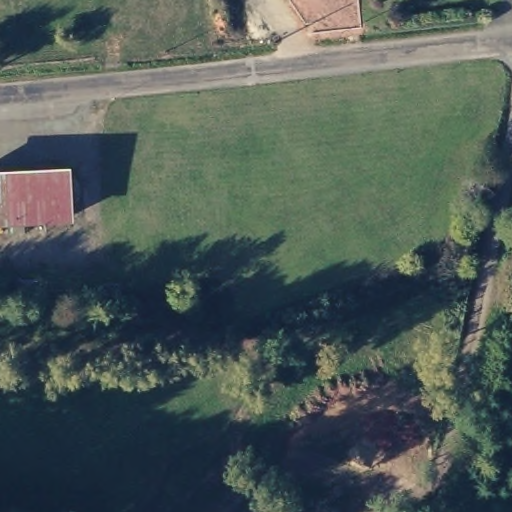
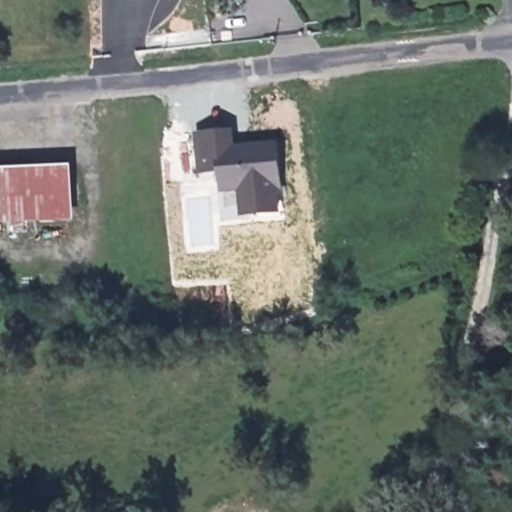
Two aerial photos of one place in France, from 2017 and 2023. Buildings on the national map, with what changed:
new [(277,143),(284,196),(277,197),(280,212),(242,216),(240,190),(221,193),(219,171),(199,174),(195,133),(232,130),(235,147),(277,143)]
unchanged [(67,163),(70,207),(0,207),(0,165),(67,163)]

